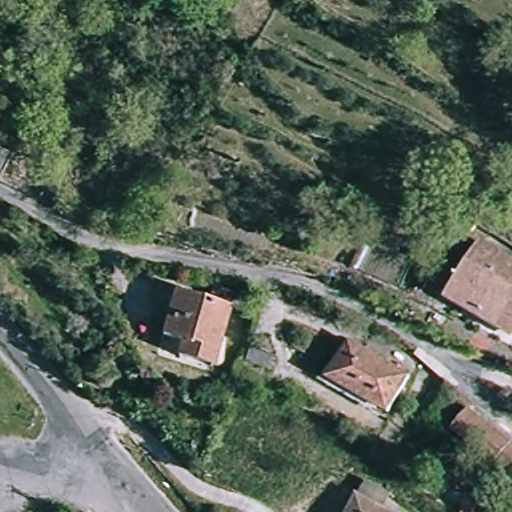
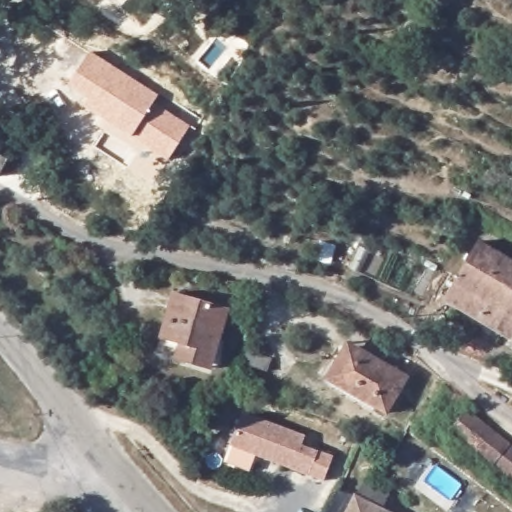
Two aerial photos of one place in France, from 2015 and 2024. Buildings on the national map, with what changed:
new [(169,161),(132,137),(82,104),(87,97),(67,85),(89,51),(158,94),(153,101),(191,126),(169,161)]
new [(9,159),(0,176),(0,154),(9,159)]
unchanged [(458,303),(441,293),(453,277),(479,234),(512,253),(512,332),(480,315),(458,303)]
unchanged [(220,320),(202,369),(185,363),(189,353),(157,342),(173,302),(204,312),(211,293),(245,306),(238,326),(220,320)]
unchanged [(245,337),(268,352),(260,362),(239,348),(245,337)]
unchanged [(402,374),(379,409),(324,374),(347,340),(402,374)]
unchanged [(512,442),(512,471),(442,423),(455,405),(512,442)]
new [(227,461),(233,447),(230,446),(243,412),(305,434),(301,445),(315,452),(307,473),(255,453),(250,468),(227,461)]
unchanged [(380,512),(344,512),(351,498),(380,512)]

